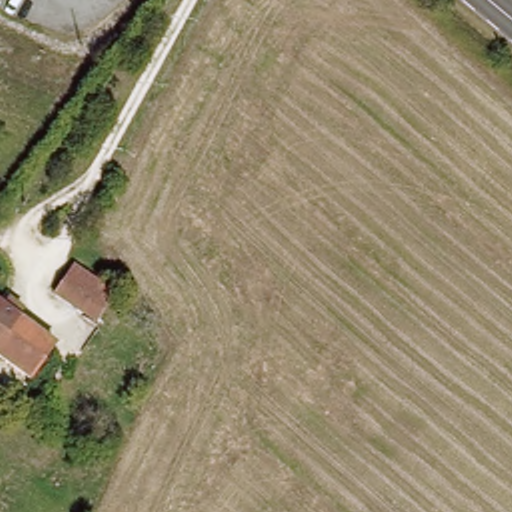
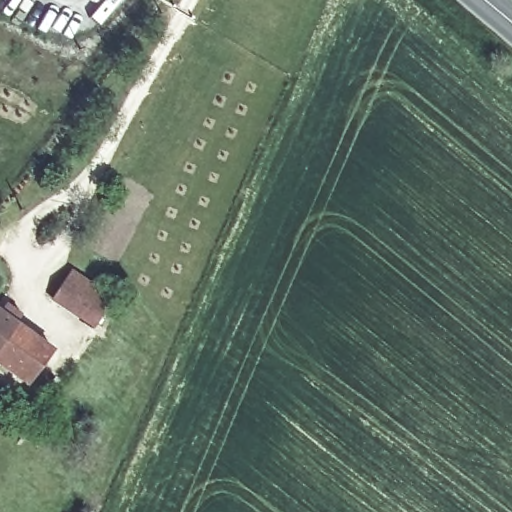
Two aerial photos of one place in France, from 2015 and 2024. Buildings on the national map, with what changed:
unchanged [(111,292),(98,319),(61,300),(76,269),(111,292)]
unchanged [(37,383),(6,361),(0,356),(0,305),(59,353),(37,383)]

